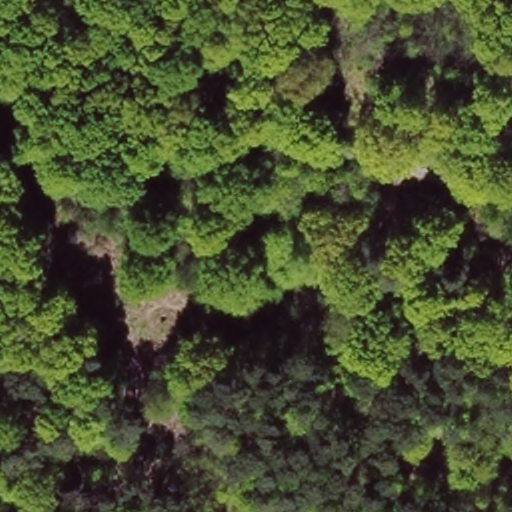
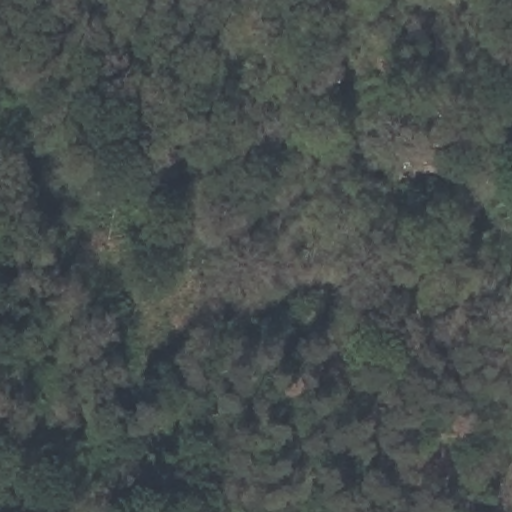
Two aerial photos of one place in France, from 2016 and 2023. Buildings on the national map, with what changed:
unchanged [(393,185),(393,152),(454,156),(452,187),(393,185)]

